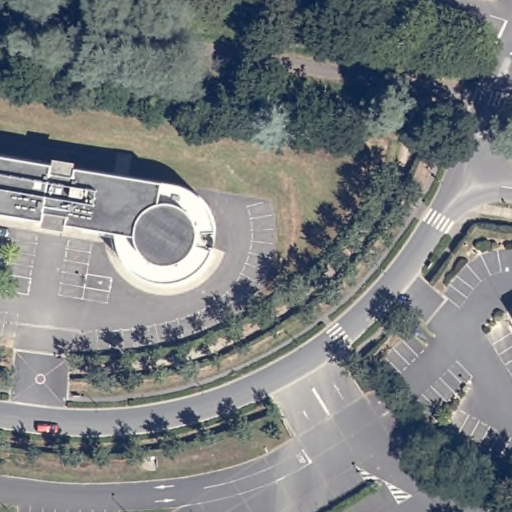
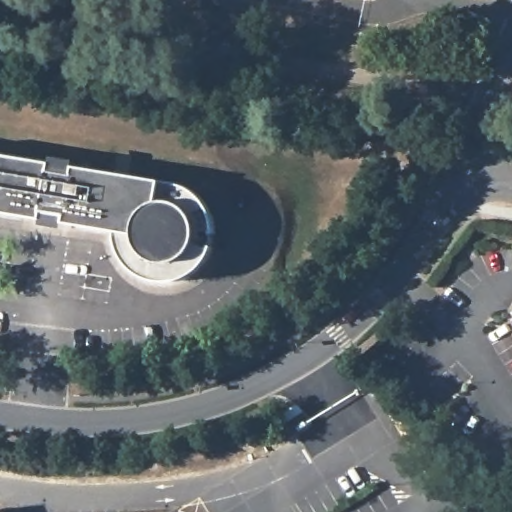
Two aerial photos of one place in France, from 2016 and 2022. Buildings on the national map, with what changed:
unchanged [(52,171),(75,175),(76,166),(161,180),(175,183),(182,185),(195,192),(204,201),(210,210),(214,219),(215,227),(216,235),(215,244),(211,253),(208,261),(201,270),(190,277),(180,282),(167,283),(155,281),(145,278),(135,272),(126,264),(121,257),(119,250),(116,241),(115,233),(65,225),(66,216),(45,213),(44,221),(24,218),(25,210),(0,206),(0,153),(54,161),(52,171)]

